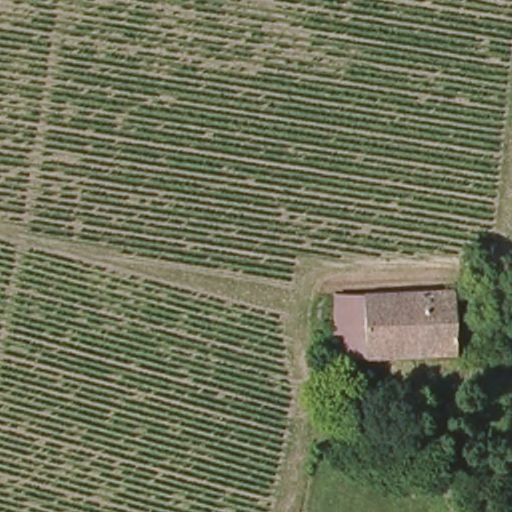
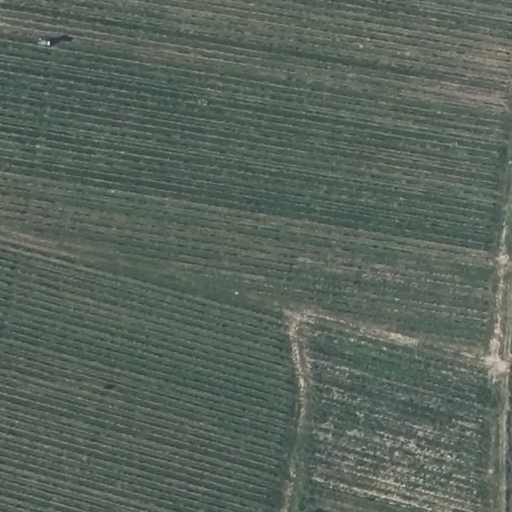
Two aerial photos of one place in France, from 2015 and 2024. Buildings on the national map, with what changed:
demolished [(330,292),(452,287),(453,354),(331,358),(330,292)]

